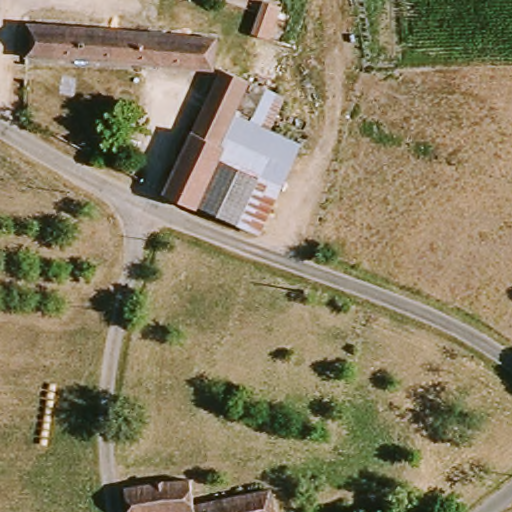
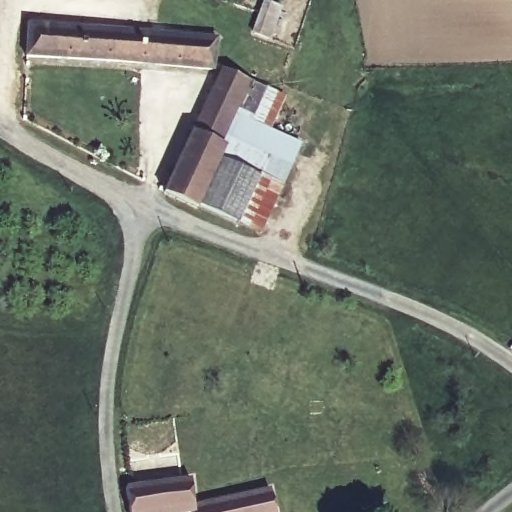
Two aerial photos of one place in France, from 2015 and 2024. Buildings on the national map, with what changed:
unchanged [(124,14),(125,0),(147,0),(146,16),(124,14)]
unchanged [(272,4),(273,0),(291,0),(289,9),(282,30),(265,24),(272,4)]
unchanged [(207,34),(205,66),(22,54),(23,23),(207,34)]
unchanged [(214,69),(249,85),(233,121),(214,171),(194,219),(155,202),(214,69)]
unchanged [(249,85),(281,98),(265,136),(298,149),(262,246),(232,234),(250,187),(214,171),(249,85)]
unchanged [(232,234),(194,219),(214,171),(250,187),(232,234)]
unchanged [(150,509),(151,512),(126,512),(120,485),(189,474),(194,501),(190,502),(150,509)]
unchanged [(194,501),(265,486),(271,512),(192,512),(190,502),(194,501)]

